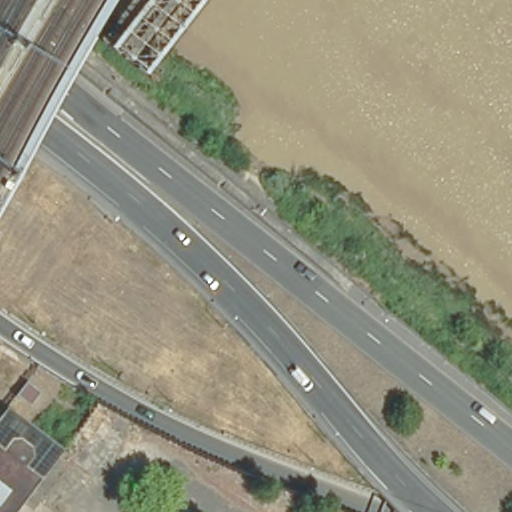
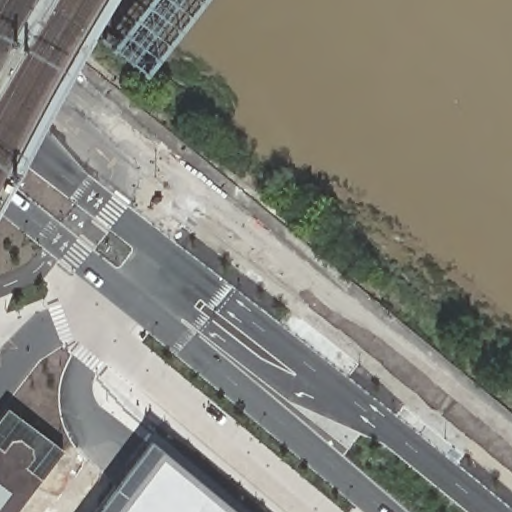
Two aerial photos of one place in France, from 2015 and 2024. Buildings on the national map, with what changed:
demolished [(23,207),(33,215),(27,222),(17,215),(23,207)]
demolished [(26,381),(40,392),(29,407),(14,395),(26,381)]
unchanged [(8,407),(64,450),(18,512),(0,512),(0,418),(8,407)]
new [(162,451),(236,512),(117,512),(162,451)]

